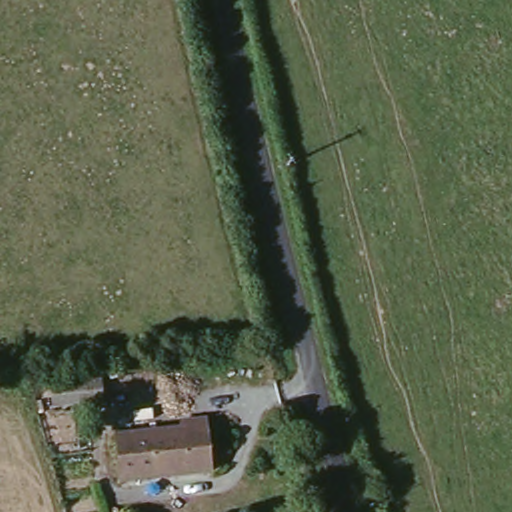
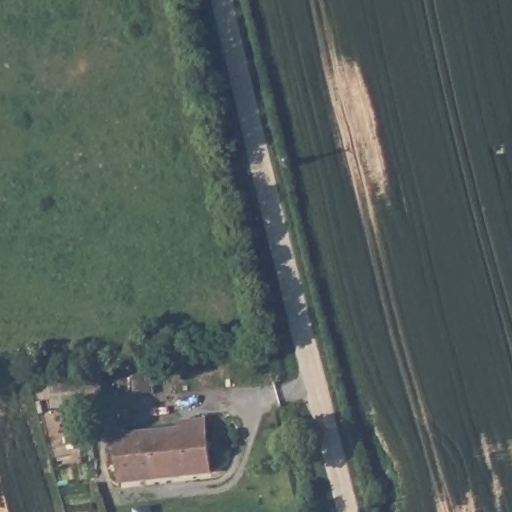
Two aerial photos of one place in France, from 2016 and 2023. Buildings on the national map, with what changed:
unchanged [(104,400),(53,407),(51,384),(102,377),(104,400)]
unchanged [(210,474),(122,485),(118,440),(183,433),(183,426),(206,423),(210,474)]

